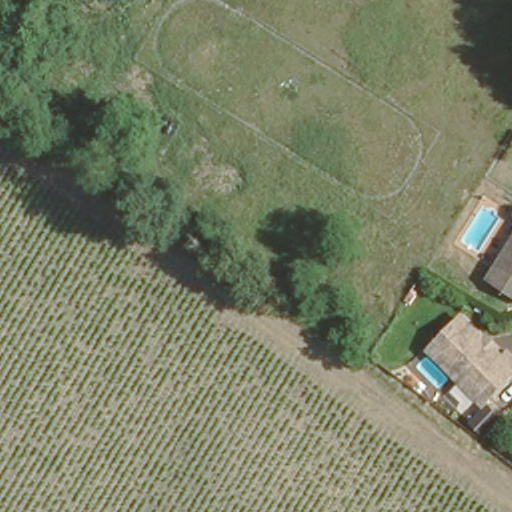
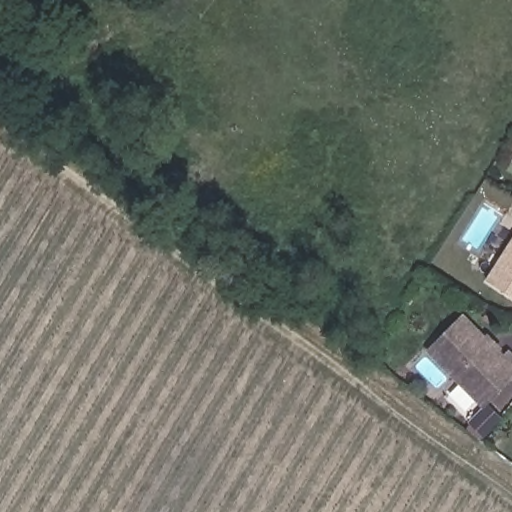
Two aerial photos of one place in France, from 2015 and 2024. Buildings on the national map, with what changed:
unchanged [(512,230),(512,300),(480,280),(512,230)]
unchanged [(459,319),(503,358),(507,353),(512,357),(512,374),(485,405),(428,355),(459,319)]

